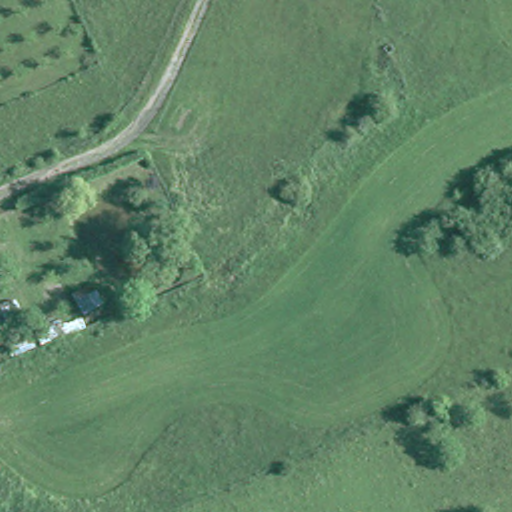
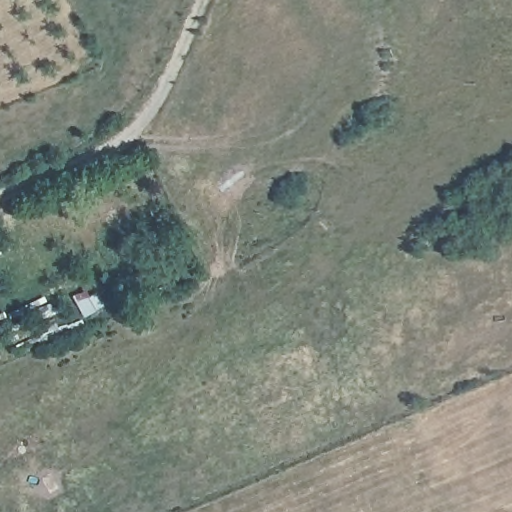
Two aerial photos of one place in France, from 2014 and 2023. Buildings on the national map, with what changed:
unchanged [(83,294),(86,297),(94,294),(99,305),(82,312),(75,298),(83,294)]

